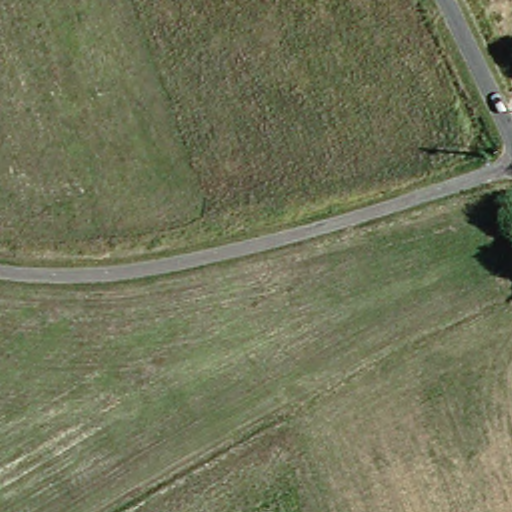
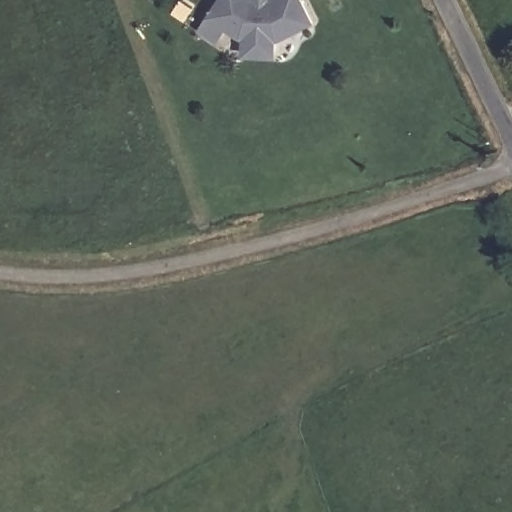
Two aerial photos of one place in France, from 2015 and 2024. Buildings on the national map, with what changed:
new [(243,57),(244,39),(227,29),(217,42),(199,29),(217,0),(304,0),(314,22),(277,40),(277,58),(243,57)]

